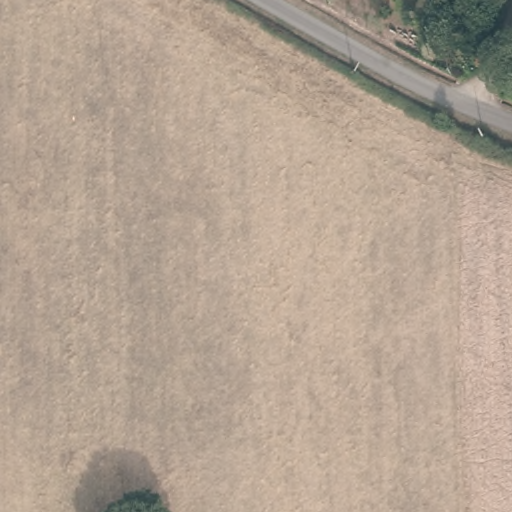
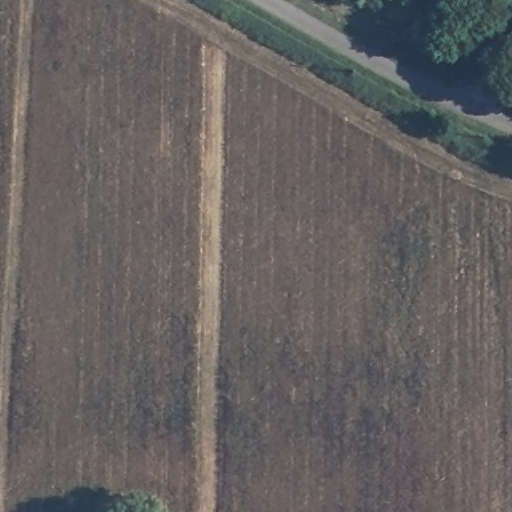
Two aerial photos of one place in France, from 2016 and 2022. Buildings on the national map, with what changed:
[]

